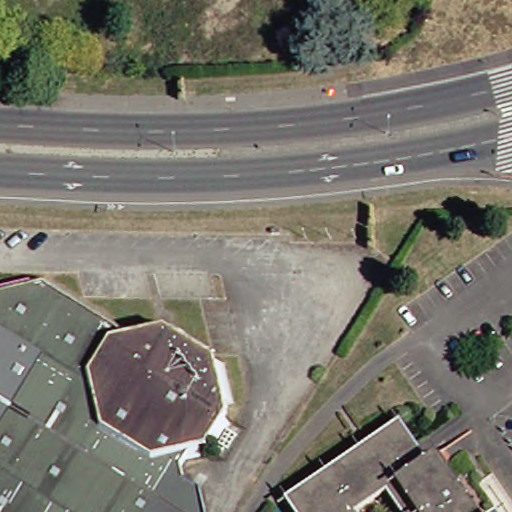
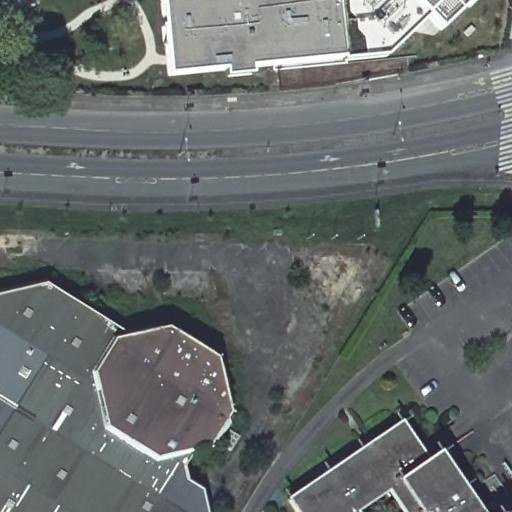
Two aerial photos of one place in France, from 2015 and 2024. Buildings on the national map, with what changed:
new [(438,13),(397,54),(262,68),(263,74),(235,76),(235,71),(175,75),(168,0),(481,0),(454,28),(438,13)]
unchanged [(123,330),(148,329),(164,339),(209,367),(217,364),(226,404),(219,406),(220,413),(215,420),(222,425),(209,445),(203,441),(199,446),(193,447),(194,456),(177,459),(174,465),(177,480),(191,488),(196,512),(0,512),(0,284),(38,277),(123,330)]
unchanged [(283,498),(397,423),(412,447),(432,478),(444,497),(450,493),(458,505),(453,509),(455,512),(396,512),(383,492),(351,512),(292,512),(283,498)]
new [(453,509),(458,505),(450,493),(444,497),(432,478),(423,464),(440,453),(478,512),(455,512),(453,509)]

